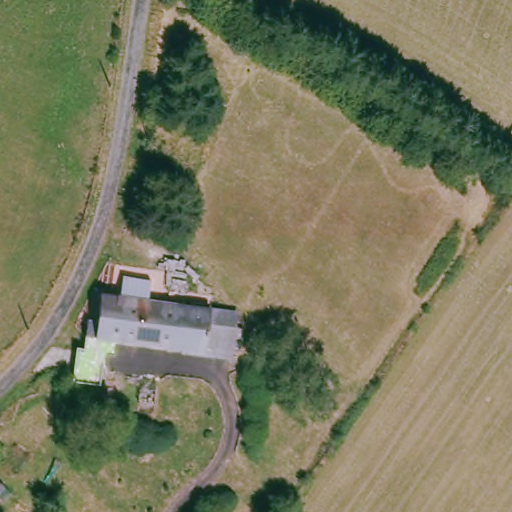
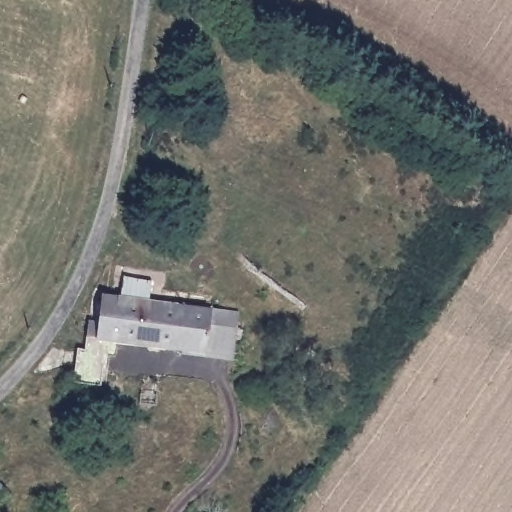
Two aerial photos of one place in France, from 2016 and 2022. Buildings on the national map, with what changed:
unchanged [(162,348),(163,344),(123,338),(121,353),(115,352),(113,385),(81,381),(85,347),(93,348),(97,319),(107,320),(111,294),(128,295),(131,274),(160,278),(157,299),(246,310),(240,354),(240,359),(162,348)]

